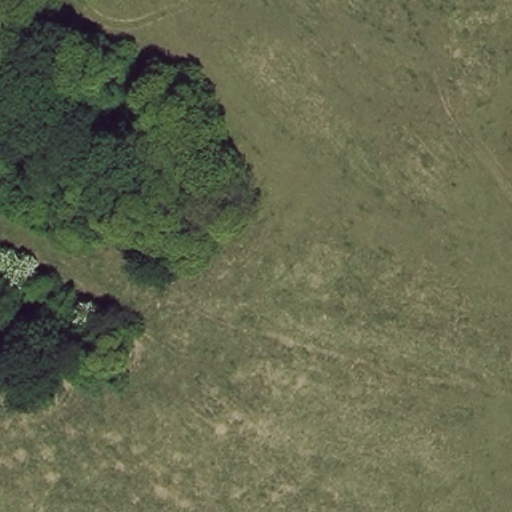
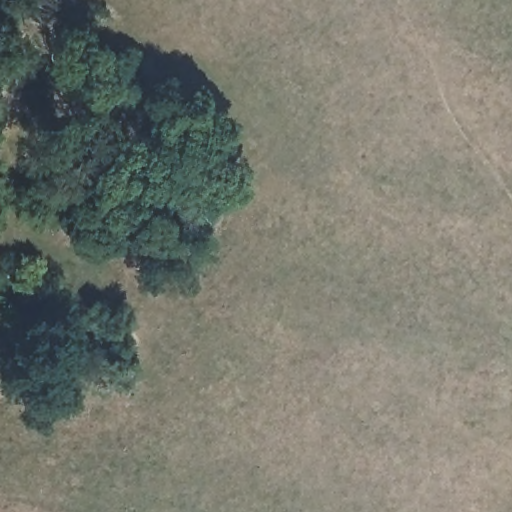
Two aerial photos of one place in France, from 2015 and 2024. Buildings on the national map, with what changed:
[]

